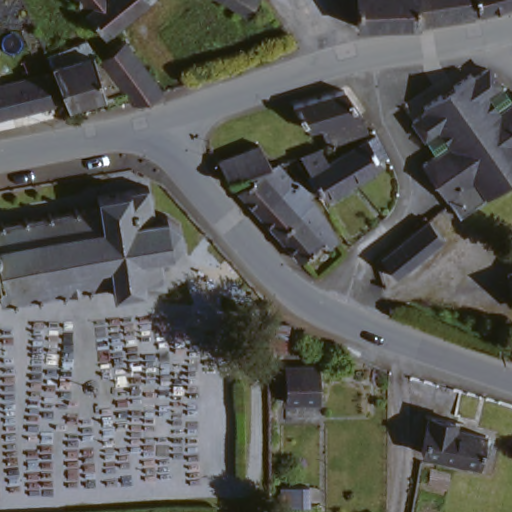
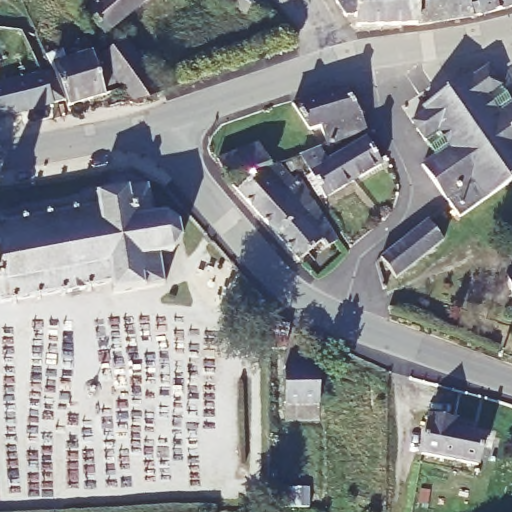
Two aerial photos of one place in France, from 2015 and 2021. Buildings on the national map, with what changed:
unchanged [(108,32),(89,11),(89,7),(83,0),(148,0),(108,32)]
unchanged [(228,0),(260,0),(248,13),(228,0)]
unchanged [(338,0),(468,0),(471,12),(441,17),(416,21),(389,22),(358,23),(358,12),(346,14),(338,0)]
unchanged [(481,13),(477,0),(512,0),(512,5),(481,13)]
unchanged [(59,70),(52,52),(89,36),(96,52),(101,51),(104,56),(129,87),(74,105),(72,99),(57,102),(0,116),(0,85),(45,74),(59,70)]
unchanged [(104,56),(129,38),(168,89),(137,99),(129,87),(104,56)]
unchanged [(423,162),(436,154),(424,137),(413,119),(427,110),(423,105),(444,90),(463,78),(472,72),(475,77),(491,66),(503,84),(512,98),(512,178),(505,183),(494,191),(466,210),(458,215),(449,202),(443,192),(423,162)]
unchanged [(332,144),(326,126),(314,128),(299,102),(349,89),(366,113),(371,128),(332,144)]
unchanged [(333,159),(371,137),(373,141),(382,136),(393,156),(384,161),(386,162),(357,180),(329,196),(305,153),(325,146),(329,154),(333,159)]
unchanged [(262,142),(276,164),(264,169),(237,179),(223,157),(262,142)]
unchanged [(276,164),(284,161),(298,156),(302,166),(291,172),(296,179),(261,211),(242,190),(237,185),(243,179),(248,184),(264,169),(276,164)]
unchanged [(306,182),(313,190),(309,192),(316,199),(282,233),(261,211),(296,179),(301,175),(306,182)]
unchanged [(4,219),(9,218),(9,222),(29,218),(28,215),(33,214),(34,217),(53,214),(53,211),(56,210),(58,212),(79,209),(79,206),(83,205),(84,207),(104,204),(102,192),(153,184),(159,214),(169,212),(186,220),(188,237),(178,250),(165,252),(167,261),(174,260),(174,267),(168,269),(169,282),(118,290),(116,279),(96,282),(97,286),(92,287),(92,283),(70,287),(71,291),(67,291),(67,289),(47,292),(47,295),(42,295),(42,293),(22,297),(23,300),(18,300),(17,298),(6,300),(2,278),(0,278),(0,224),(4,223),(4,219)]
unchanged [(327,237),(305,257),(282,233),(316,199),(324,210),(342,237),(333,244),(327,237)]
unchanged [(398,280),(383,259),(428,223),(444,244),(398,280)]
unchanged [(507,274),(512,272),(512,289),(507,274)]
unchanged [(274,316),(292,319),(290,345),(282,344),(274,344),(274,316)]
unchanged [(278,400),(277,363),(311,363),(311,400),(278,400)]
unchanged [(461,427),(487,433),(486,436),(482,435),(475,466),(420,452),(427,417),(423,416),(424,413),(463,422),(461,427)]
unchanged [(306,503),(279,503),(279,485),(306,484),(306,503)]

